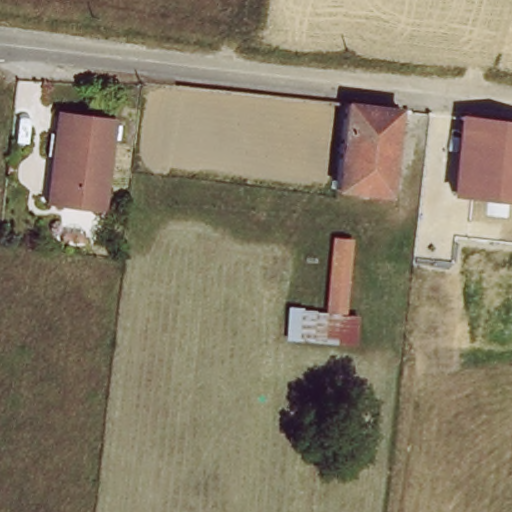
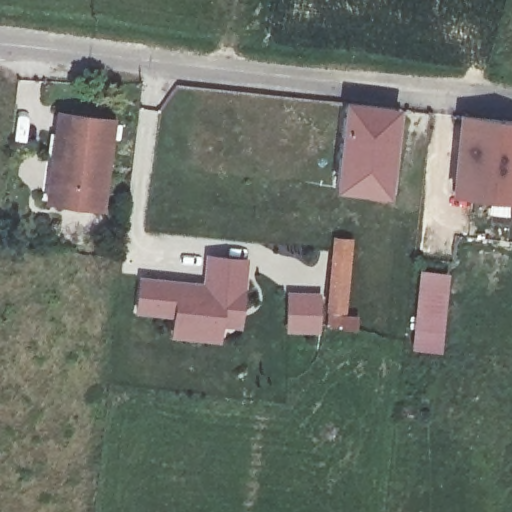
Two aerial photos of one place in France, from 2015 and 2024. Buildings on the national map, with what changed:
unchanged [(389,200),(334,195),(345,105),(398,111),(389,200)]
unchanged [(460,112),(512,119),(512,198),(452,192),(460,112)]
unchanged [(57,137),(59,117),(113,123),(103,212),(59,207),(49,206),(57,137)]
demolished [(327,306),(334,231),(352,232),(346,306),(327,306)]
new [(354,239),(345,315),(359,316),(355,347),(326,343),(334,236),(354,239)]
new [(203,282),(205,252),(249,257),(242,328),(224,326),(220,343),(170,339),(174,318),(134,315),(140,276),(203,282)]
new [(439,352),(413,349),(420,271),(448,273),(439,352)]
new [(321,297),(320,331),(288,329),(290,295),(321,297)]

